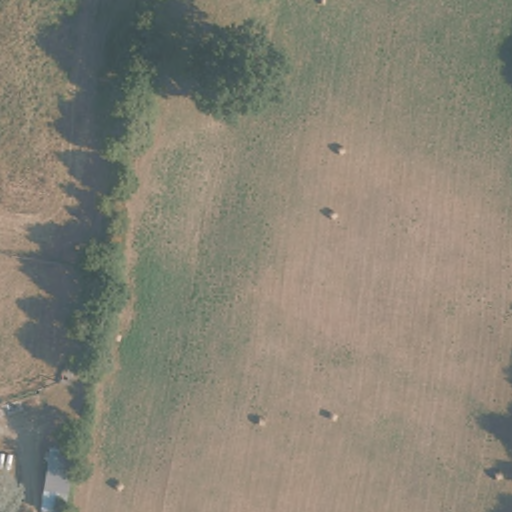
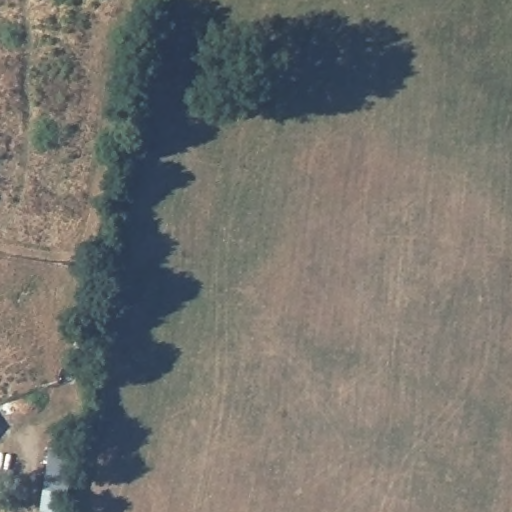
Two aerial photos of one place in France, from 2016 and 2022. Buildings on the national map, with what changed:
unchanged [(66,511),(44,508),(52,446),(76,449),(66,511)]

